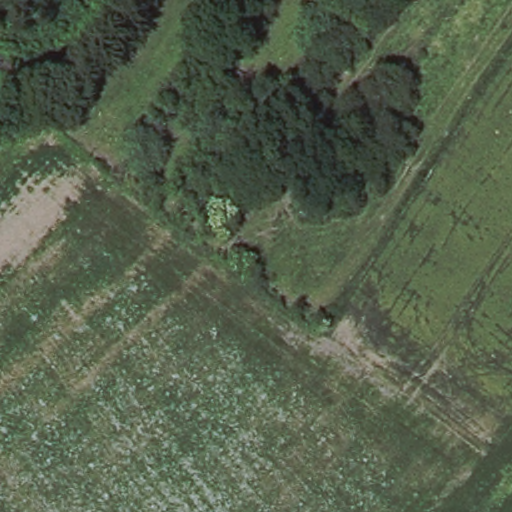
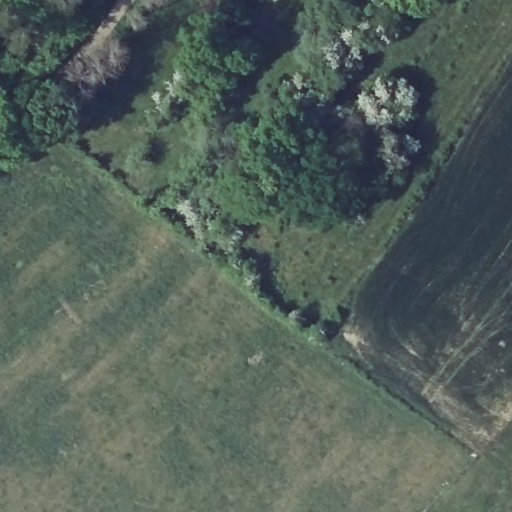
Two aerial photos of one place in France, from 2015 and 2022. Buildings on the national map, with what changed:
unchanged [(2,89),(0,87),(0,52),(20,69),(2,89)]

